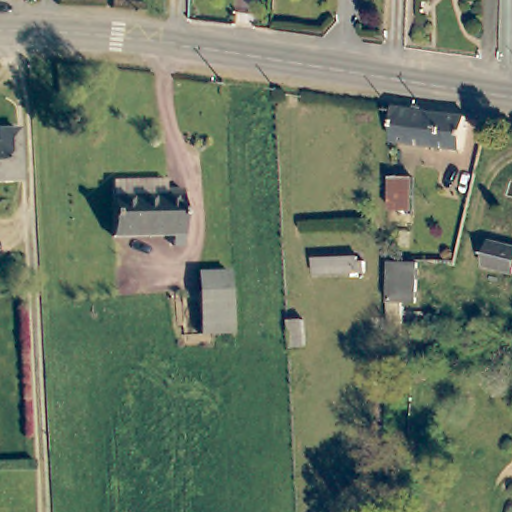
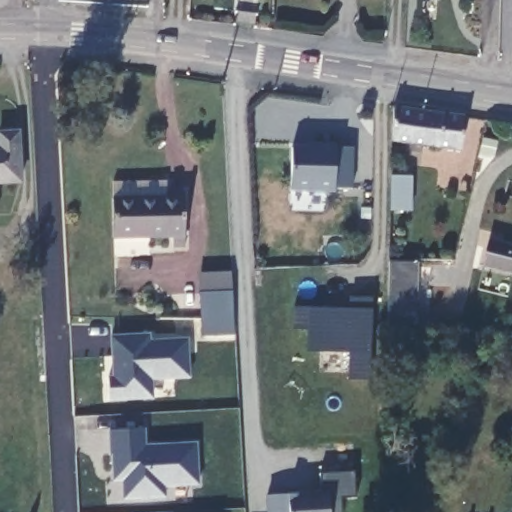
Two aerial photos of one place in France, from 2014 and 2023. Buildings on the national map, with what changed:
unchanged [(392,107),(462,118),(457,150),(388,138),(392,107)]
unchanged [(15,128),(18,176),(0,177),(0,129),(15,128)]
new [(334,188),(334,192),(292,191),(291,146),(306,147),(307,143),(353,146),(353,187),(334,188)]
unchanged [(386,209),(387,160),(408,160),(408,209),(386,209)]
unchanged [(174,241),(114,242),(112,187),(172,187),(172,199),(185,199),(186,241),(186,252),(183,252),(174,252),(174,241)]
unchanged [(488,257),(490,247),(504,251),(512,252),(512,277),(485,272),(488,257)]
unchanged [(415,257),(415,296),(400,296),(400,317),(388,317),(387,261),(387,256),(415,257)]
demolished [(311,257),(358,257),(358,264),(364,264),(364,271),(311,272),(311,257)]
unchanged [(198,295),(202,295),(200,277),(233,275),(233,293),(236,335),(200,337),(198,295)]
new [(371,310),(369,357),(368,380),(346,378),(347,353),(305,351),(306,328),(293,327),(295,306),(347,308),(347,297),(372,298),(371,310)]
demolished [(296,344),(295,320),(308,319),(309,344),(296,344)]
new [(150,342),(189,340),(191,378),(152,380),(153,399),(110,401),(109,378),(114,378),(113,358),(112,337),(150,335),(150,342)]
new [(143,430),(144,447),(195,444),(198,485),(164,487),(164,497),(123,500),(122,472),(113,472),(112,456),(110,456),(109,431),(143,430)]
new [(359,496),(339,498),(340,512),(266,512),(264,495),(322,490),(320,474),(356,471),(359,496)]

